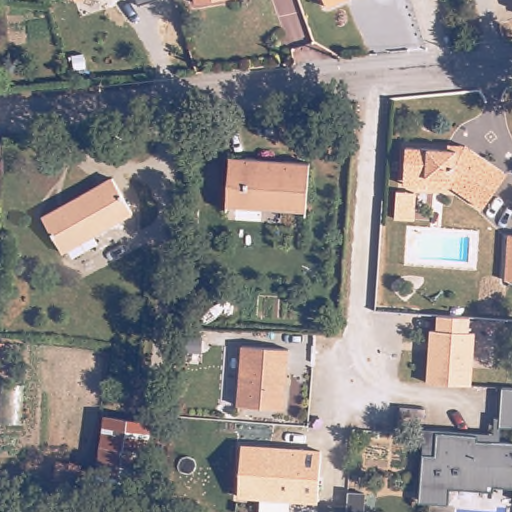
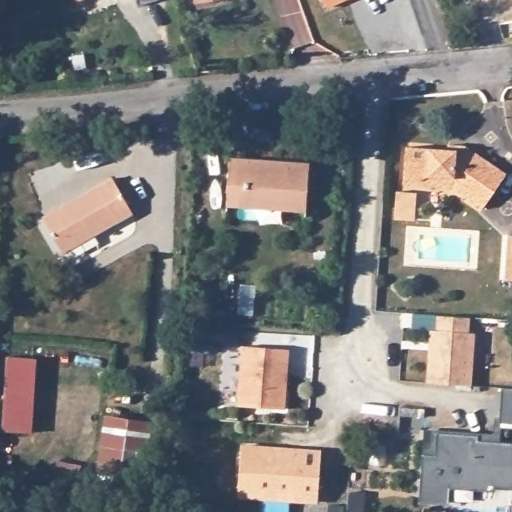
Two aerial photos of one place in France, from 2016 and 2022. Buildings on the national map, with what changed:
unchanged [(75,0),(79,0),(75,1),(75,0)]
unchanged [(194,0),(214,0),(194,3),(194,0)]
unchanged [(327,0),(344,0),(330,6),(327,0)]
unchanged [(406,180),(408,147),(449,151),(450,144),(467,145),(473,149),(509,174),(486,209),(455,188),(406,185),(406,180)]
unchanged [(229,157),(307,162),(305,207),(227,201),(229,157)]
unchanged [(114,180),(134,214),(66,252),(47,217),(114,180)]
unchanged [(418,193),(416,221),(398,219),(399,192),(418,193)]
unchanged [(504,281),(508,236),(512,236),(512,282),(504,281)]
unchanged [(0,322),(0,287),(3,287),(0,322)]
unchanged [(456,313),(472,314),(471,329),(478,330),(474,382),(430,380),(433,327),(439,327),(440,312),(456,313)]
unchanged [(291,363),(287,363),(285,386),(289,387),(288,407),(241,403),(245,343),(292,347),(291,363)]
new [(33,433),(3,430),(8,356),(39,358),(33,433)]
unchanged [(501,424),(504,383),(512,384),(512,425),(501,424)]
unchanged [(154,425),(144,487),(101,481),(106,416),(154,425)]
unchanged [(493,485),(493,490),(449,486),(447,502),(420,500),(424,454),(437,456),(439,432),(480,436),(479,441),(512,444),(512,487),(493,485)]
unchanged [(323,453),(319,503),(239,498),(243,448),(323,453)]

